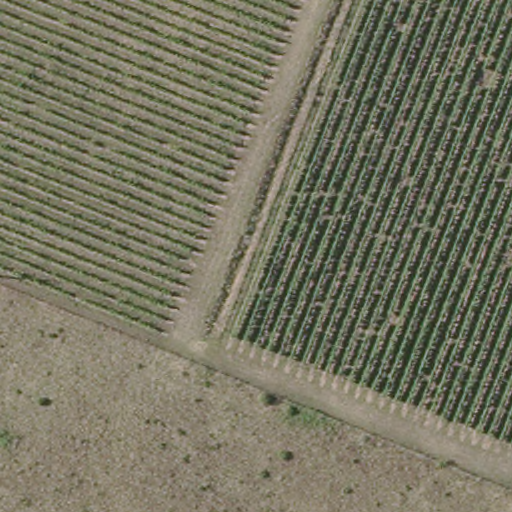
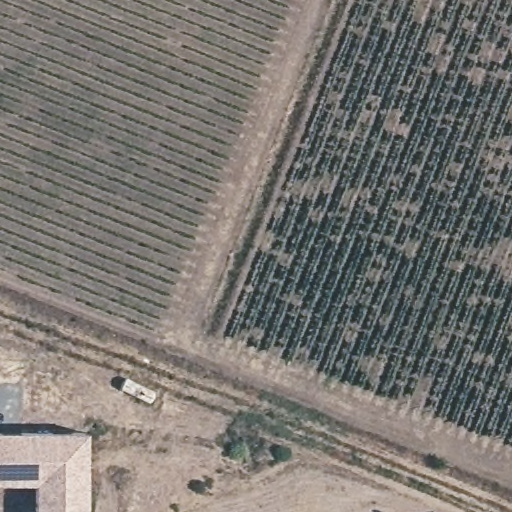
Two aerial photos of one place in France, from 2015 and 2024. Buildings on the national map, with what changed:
new [(88,512),(46,512),(46,482),(0,482),(0,435),(89,435),(88,512)]

